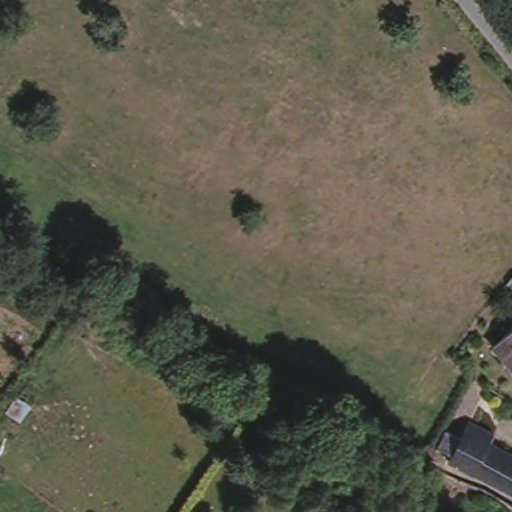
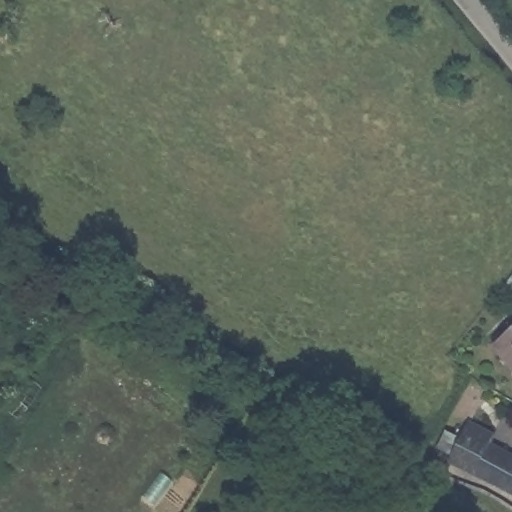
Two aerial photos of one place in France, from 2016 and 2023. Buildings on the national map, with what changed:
unchanged [(512,317),(512,370),(487,337),(512,317)]
unchanged [(512,453),(512,492),(466,465),(453,460),(457,452),(447,448),(456,431),(467,434),(472,424),(495,434),(492,441),(512,453)]

